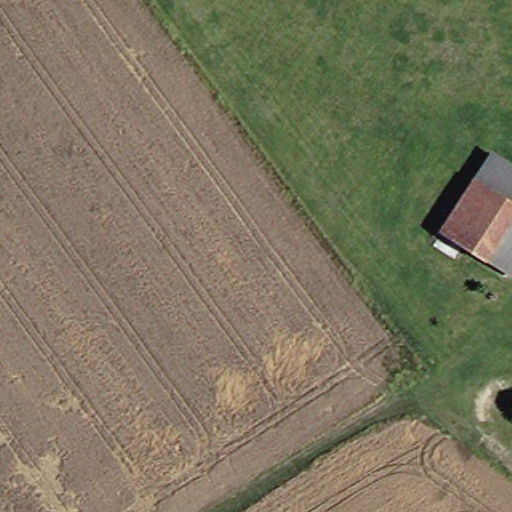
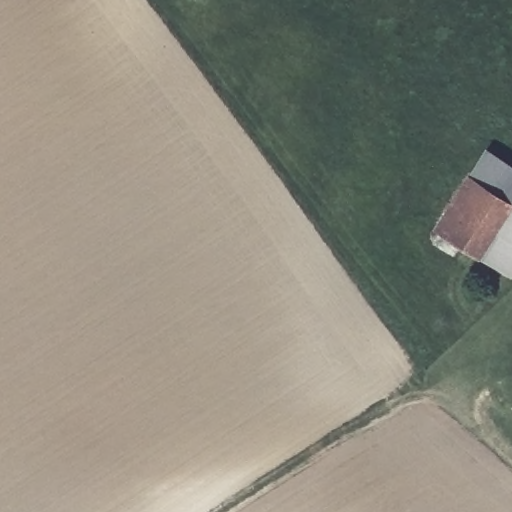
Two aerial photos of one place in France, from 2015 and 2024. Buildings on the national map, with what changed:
unchanged [(481,182),(495,156),(512,165),(512,198),(481,182)]
unchanged [(512,198),(512,230),(496,260),(452,235),(481,182),(512,198)]
unchanged [(496,260),(512,230),(512,268),(496,260)]

